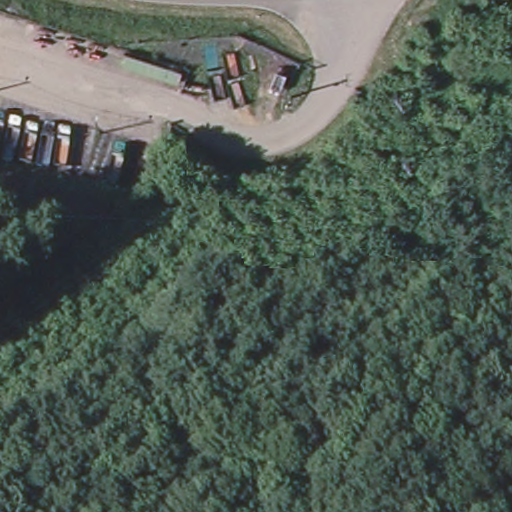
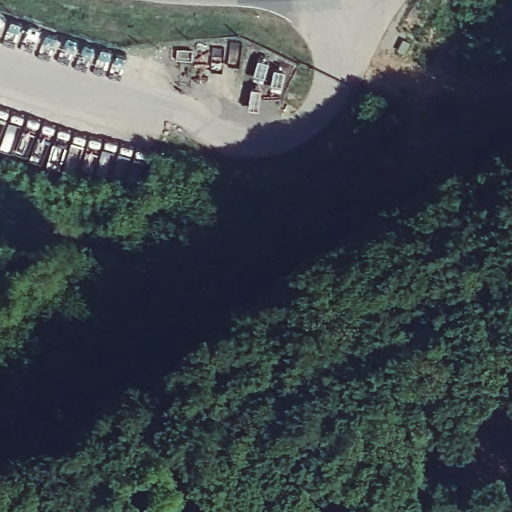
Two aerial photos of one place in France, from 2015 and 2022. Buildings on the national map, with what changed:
[]

